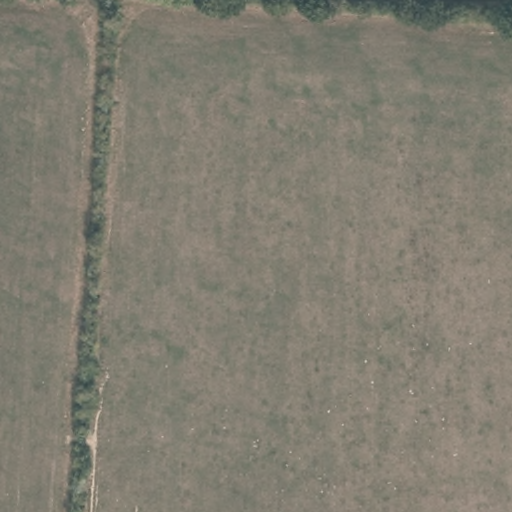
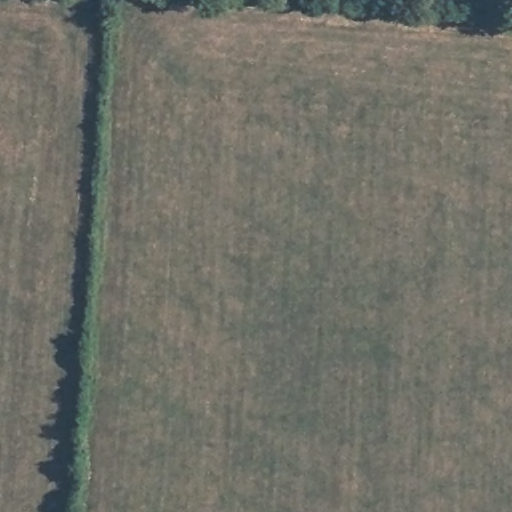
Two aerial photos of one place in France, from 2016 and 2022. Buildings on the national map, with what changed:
[]

